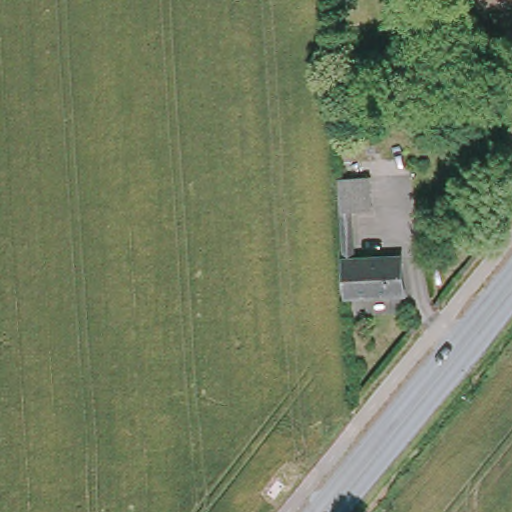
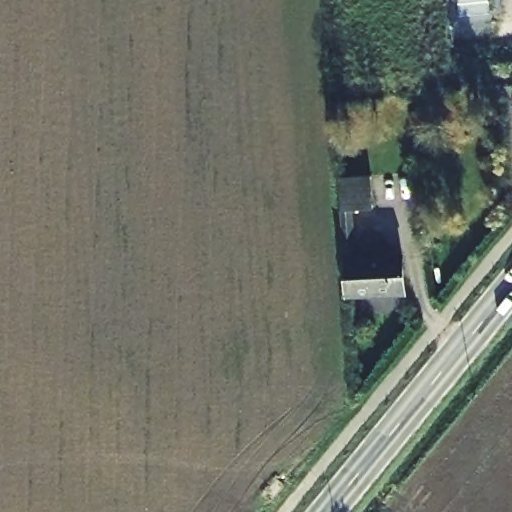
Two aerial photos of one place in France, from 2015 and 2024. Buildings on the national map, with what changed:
unchanged [(379,204),(356,205),(358,254),(407,251),(409,286),(351,288),(344,179),(377,177),(379,204)]

